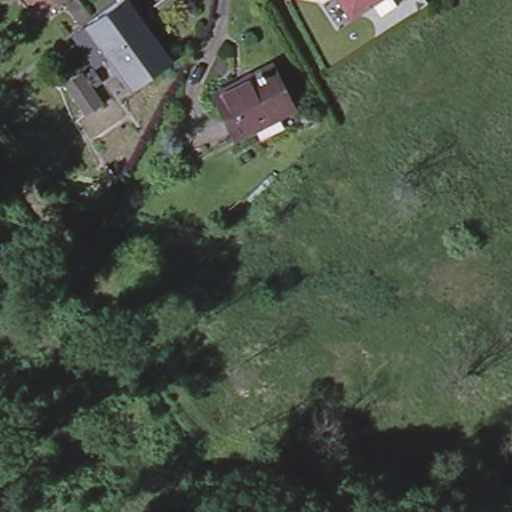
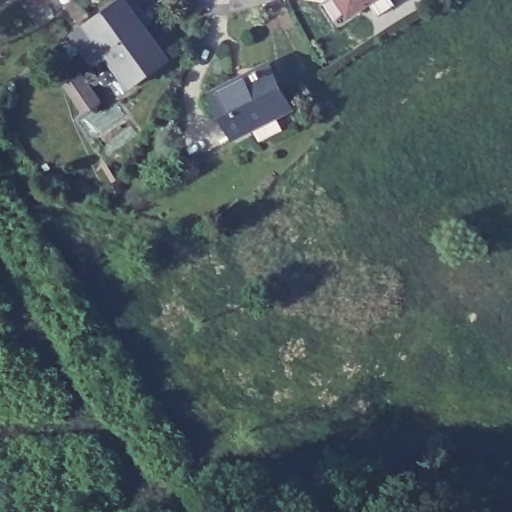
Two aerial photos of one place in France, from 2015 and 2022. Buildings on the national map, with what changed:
unchanged [(93,25),(91,23),(122,0),(127,0),(141,19),(143,17),(172,58),(136,86),(110,49),(96,59),(80,35),(93,25)]
unchanged [(349,12),(341,0),(366,0),(349,12)]
unchanged [(288,107),(233,134),(213,91),(266,64),(288,107)]

